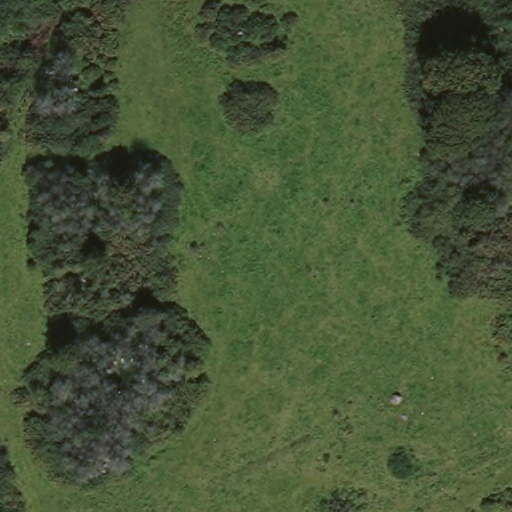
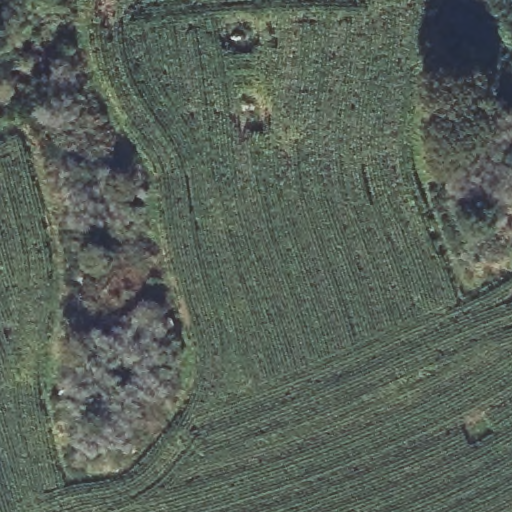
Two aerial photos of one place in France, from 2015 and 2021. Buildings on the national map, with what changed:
[]

